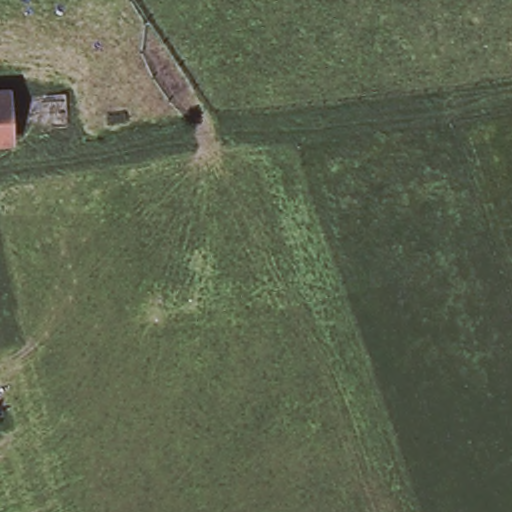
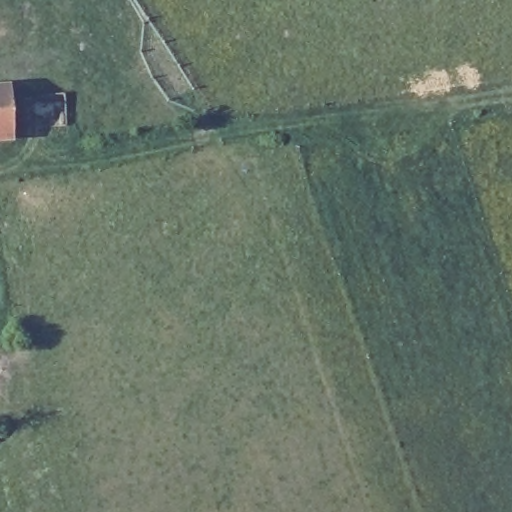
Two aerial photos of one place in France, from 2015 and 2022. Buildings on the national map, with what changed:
unchanged [(9,145),(0,145),(0,96),(5,96),(9,145)]

